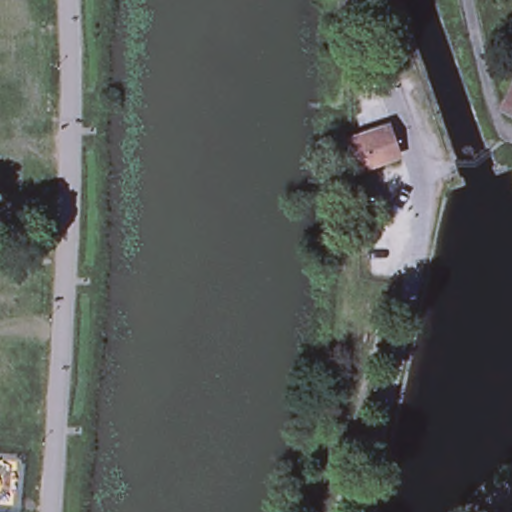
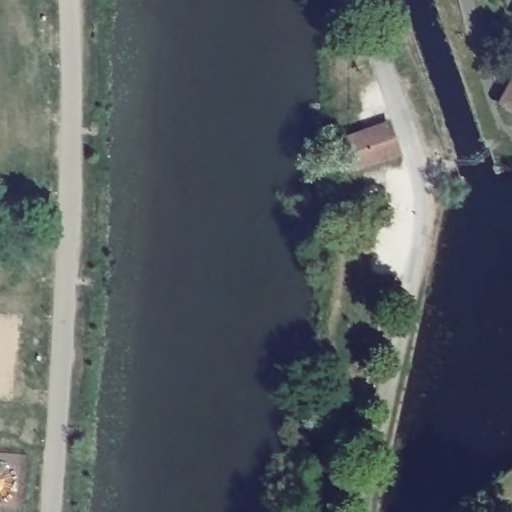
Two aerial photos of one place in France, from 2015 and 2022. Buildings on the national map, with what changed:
unchanged [(512,89),(512,103),(507,100),(512,89)]
unchanged [(383,126),(393,155),(368,166),(357,137),(383,126)]

